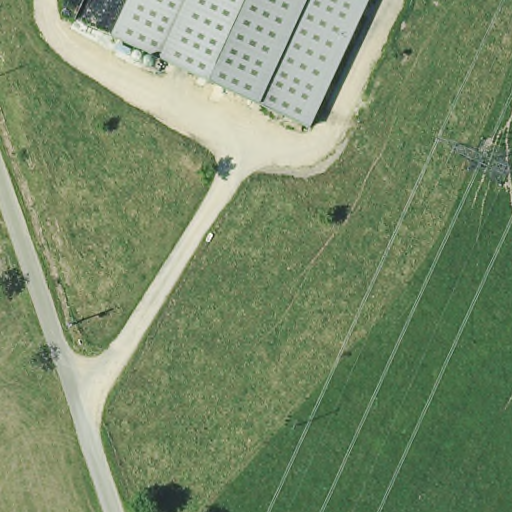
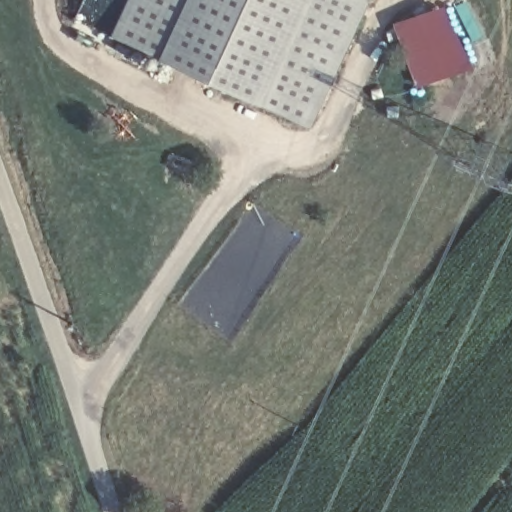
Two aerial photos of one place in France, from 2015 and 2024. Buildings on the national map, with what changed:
unchanged [(125,41),(110,35),(127,0),(364,0),(305,124),(125,41)]
new [(442,5),(470,68),(415,84),(391,23),(442,5)]

